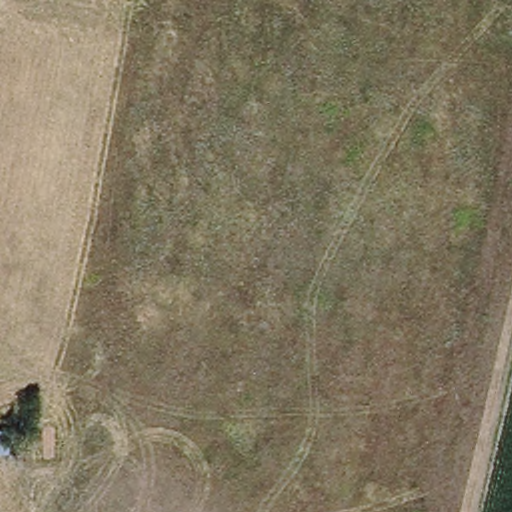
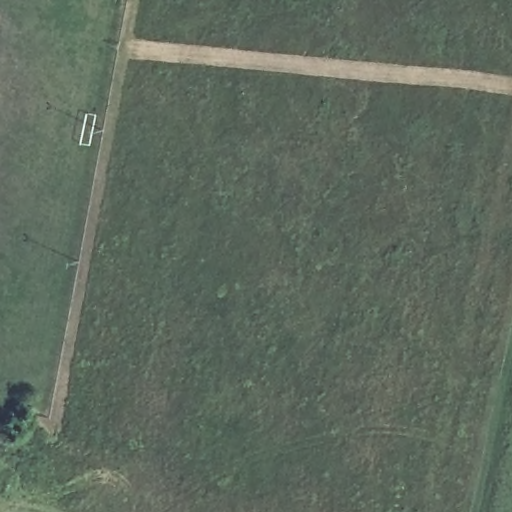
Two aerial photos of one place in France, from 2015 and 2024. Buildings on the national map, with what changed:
[]

